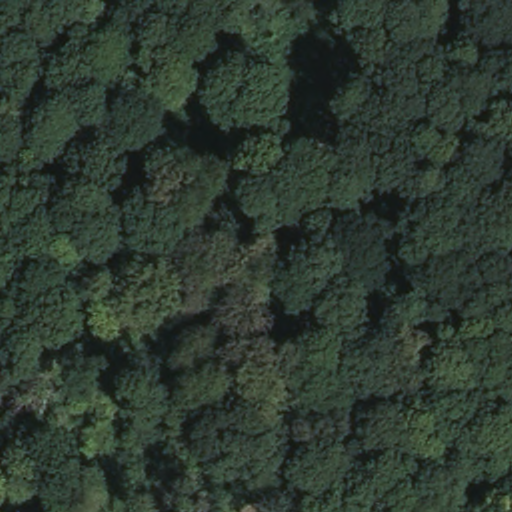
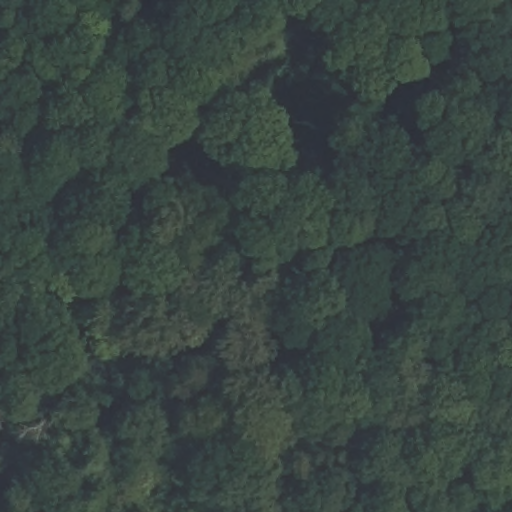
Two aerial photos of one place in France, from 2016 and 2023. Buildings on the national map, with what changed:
[]

